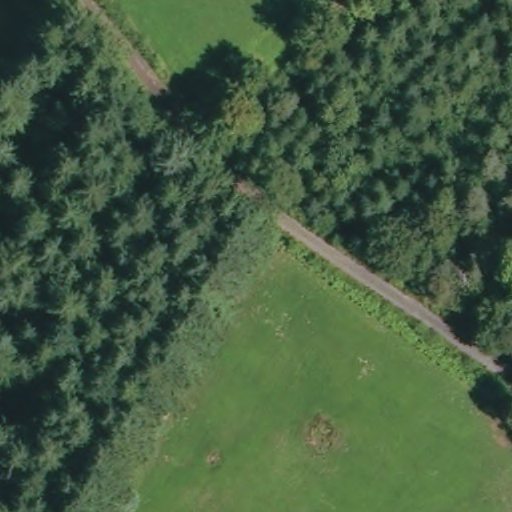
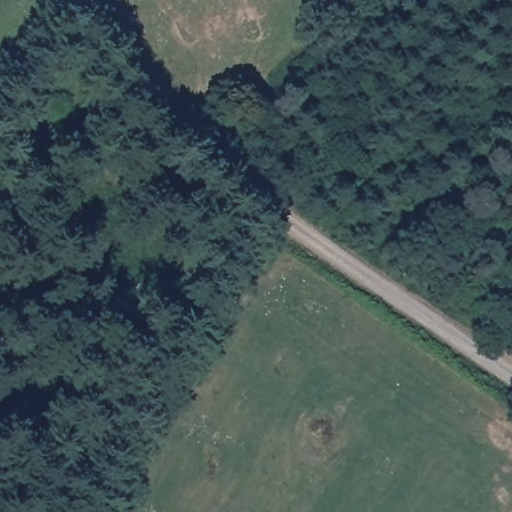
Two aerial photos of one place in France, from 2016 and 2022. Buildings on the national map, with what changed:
unchanged [(134,118),(120,102),(141,81),(155,96),(134,118)]

